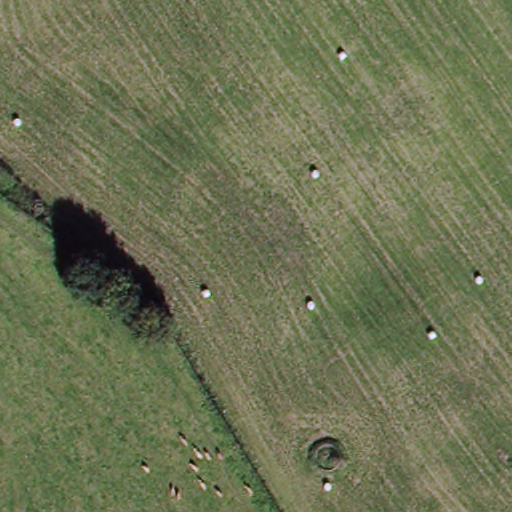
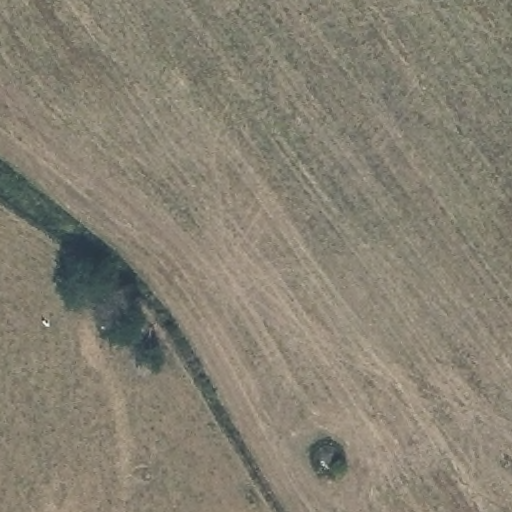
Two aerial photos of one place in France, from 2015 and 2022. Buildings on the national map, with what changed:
[]

